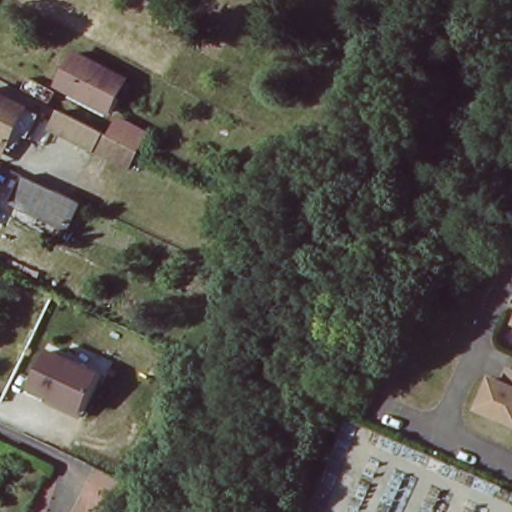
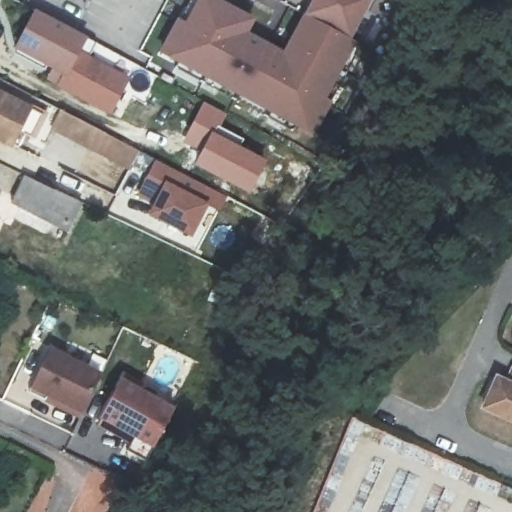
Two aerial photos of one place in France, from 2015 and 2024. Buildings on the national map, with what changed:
new [(302,123),(181,61),(165,52),(181,22),(192,0),(217,0),(254,19),(248,31),(288,52),(308,13),(315,0),(376,0),(357,39),(364,42),(340,90),(318,132),(302,123)]
new [(45,80),(48,67),(14,50),(35,11),(87,39),(83,52),(78,50),(59,87),(45,80)]
unchanged [(110,113),(59,87),(78,50),(129,76),(110,113)]
new [(181,61),(302,123),(298,131),(178,68),(181,61)]
unchanged [(30,111),(12,146),(0,140),(0,95),(30,111)]
new [(202,101),(227,114),(220,127),(217,132),(212,131),(200,151),(181,141),(202,101)]
unchanged [(138,154),(128,171),(90,152),(49,130),(57,112),(100,134),(107,137),(138,154)]
demolished [(107,137),(118,116),(149,132),(138,154),(107,137)]
new [(200,151),(212,131),(217,132),(220,127),(243,139),(240,146),(266,160),(250,194),(193,165),(200,151)]
new [(153,159),(226,196),(219,212),(208,206),(191,237),(146,214),(150,206),(133,196),(153,159)]
unchanged [(70,198),(63,210),(73,214),(60,242),(49,237),(55,225),(10,203),(23,176),(70,198)]
unchanged [(32,393),(35,387),(53,352),(103,380),(83,415),(80,420),(32,393)]
new [(115,373),(133,382),(130,388),(162,404),(137,456),(116,446),(124,430),(108,422),(105,430),(91,423),(115,373)]
unchanged [(500,383),(510,388),(512,385),(512,424),(487,412),(500,383)]

